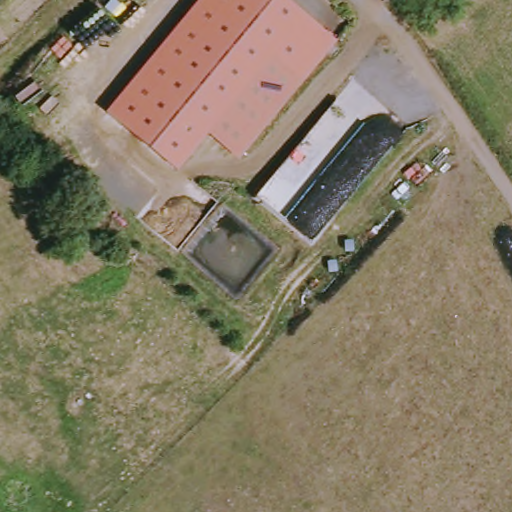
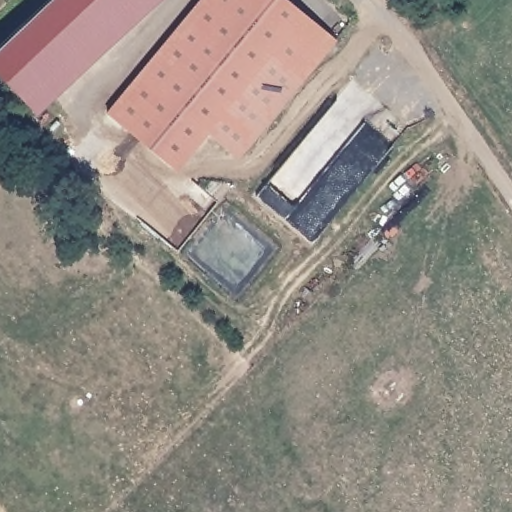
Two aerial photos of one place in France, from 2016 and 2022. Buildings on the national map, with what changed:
new [(0,45),(49,0),(158,0),(36,114),(0,74),(0,45)]
unchanged [(308,18),(336,42),(303,85),(273,60),(176,176),(105,115),(200,0),(286,0),(308,18)]
unchanged [(218,126),(273,60),(303,85),(238,160),(209,136),(218,126)]

